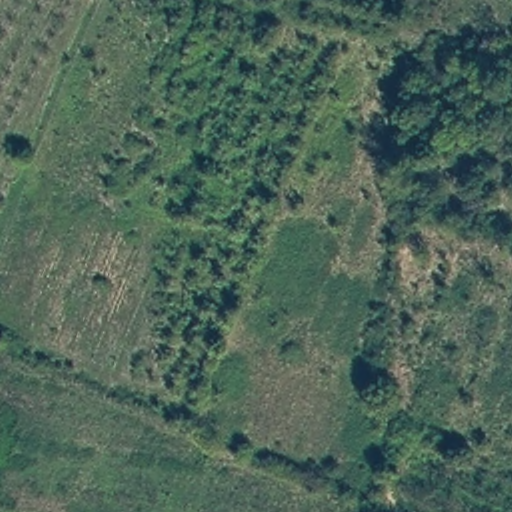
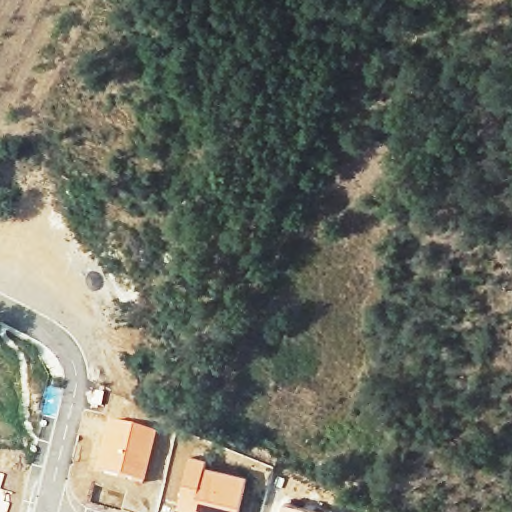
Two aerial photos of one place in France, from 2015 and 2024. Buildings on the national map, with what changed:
new [(105,422),(155,433),(142,483),(93,470),(105,422)]
new [(208,458),(206,465),(248,475),(239,512),(193,512),(193,511),(177,506),(190,455),(208,458)]
new [(318,512),(280,512),(282,502),(318,512)]

